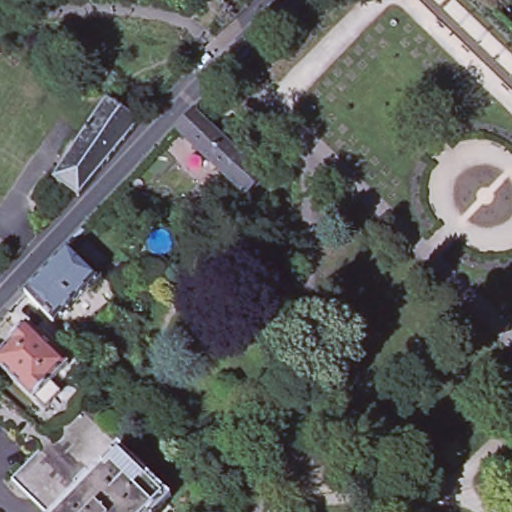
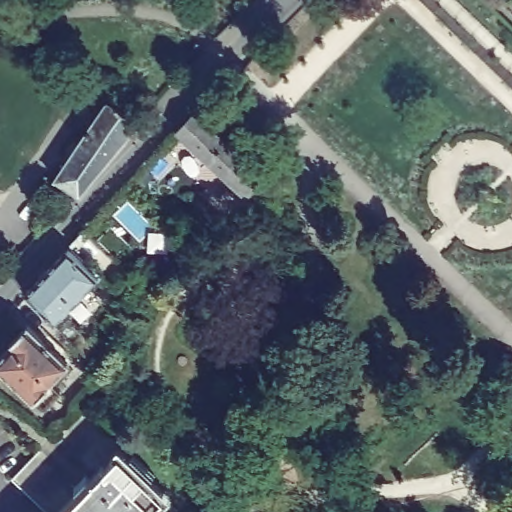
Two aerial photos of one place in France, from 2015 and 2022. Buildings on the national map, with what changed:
unchanged [(56,183),(108,105),(142,125),(79,199),(56,183)]
unchanged [(178,134),(196,114),(198,117),(218,136),(230,124),(247,142),(236,153),(265,179),(247,198),(178,134)]
unchanged [(61,328),(55,322),(26,292),(69,246),(99,275),(59,317),(65,323),(61,328)]
unchanged [(70,368),(52,387),(61,396),(45,413),(36,403),(35,404),(0,369),(0,362),(12,349),(10,348),(29,329),(70,368)]
unchanged [(11,479),(51,438),(52,439),(81,409),(124,450),(119,455),(166,500),(155,512),(45,512),(11,479)]

